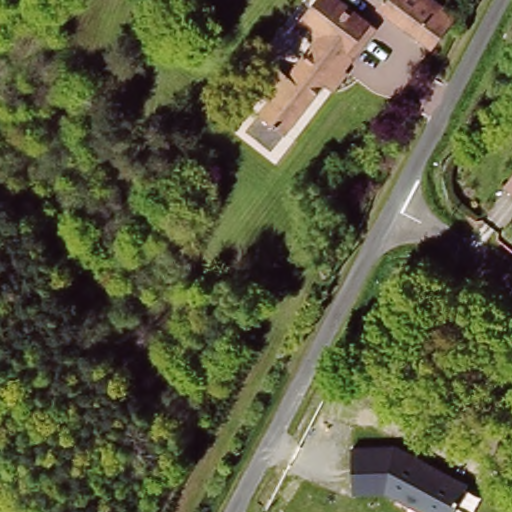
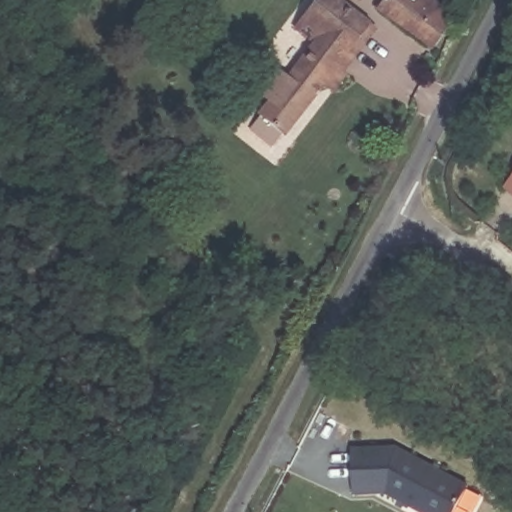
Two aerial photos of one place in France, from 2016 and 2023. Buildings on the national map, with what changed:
unchanged [(246,128),(257,113),(267,100),(257,92),(276,67),(286,73),(311,43),(293,29),(316,0),(343,0),(341,3),(368,24),(376,30),(344,72),(330,93),(321,87),(285,135),(273,150),(246,128)]
unchanged [(451,18),(428,48),(373,7),(379,0),(427,0),(451,18)]
unchanged [(512,181),(512,196),(505,190),(512,181)]
unchanged [(469,487),(455,512),(417,512),(383,494),(350,496),(347,450),(396,449),(469,487)]

